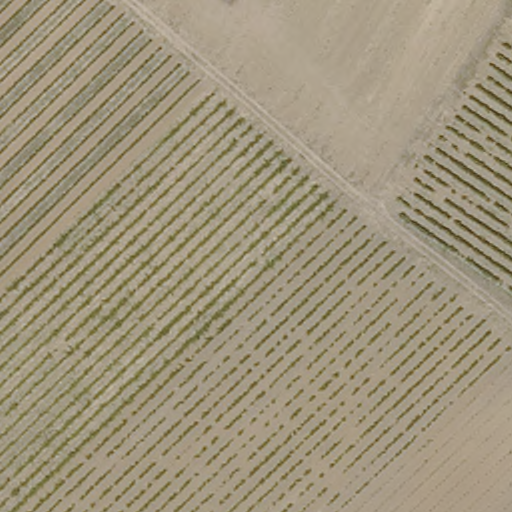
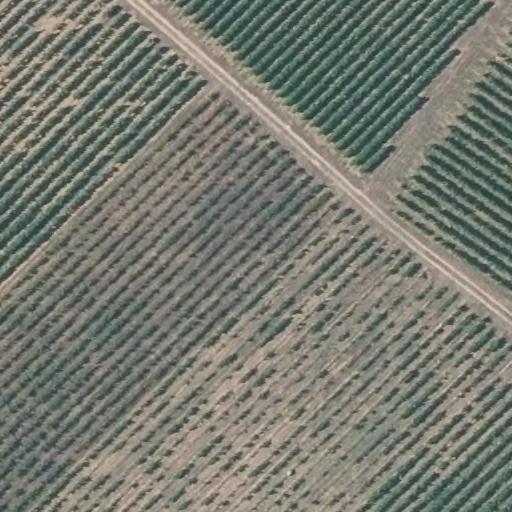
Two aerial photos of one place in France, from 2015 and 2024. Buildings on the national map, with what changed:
[]

